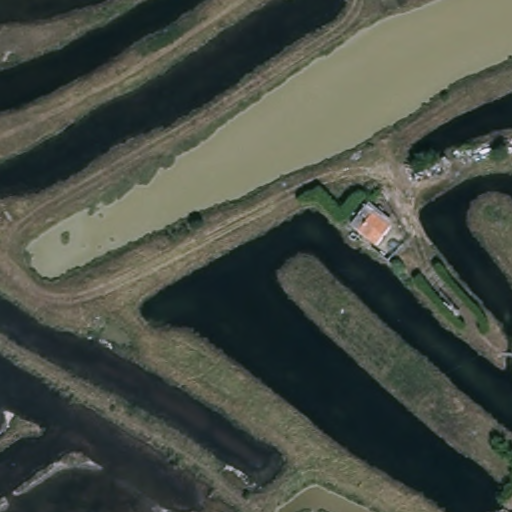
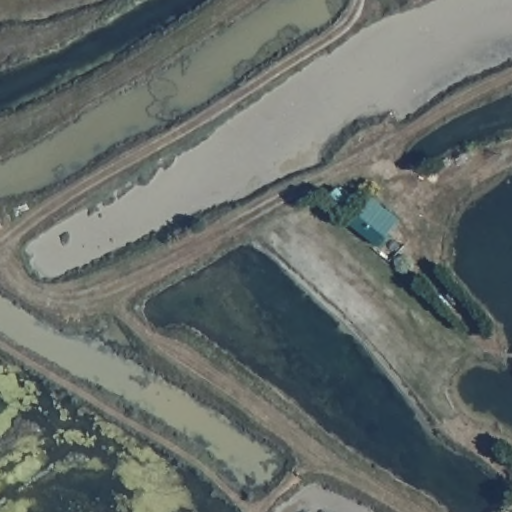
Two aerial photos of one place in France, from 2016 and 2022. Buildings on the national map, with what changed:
unchanged [(394,226),(381,242),(360,223),(372,208),(394,226)]

